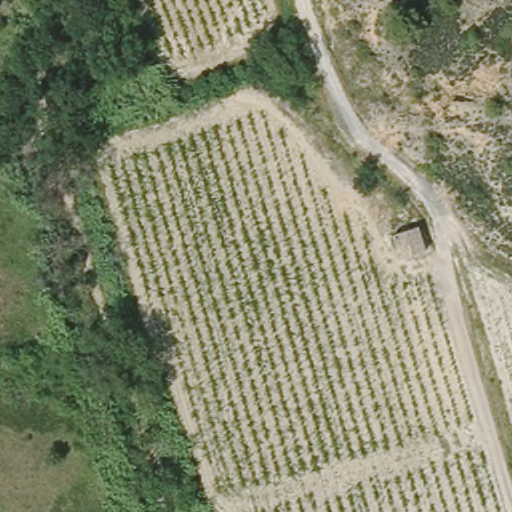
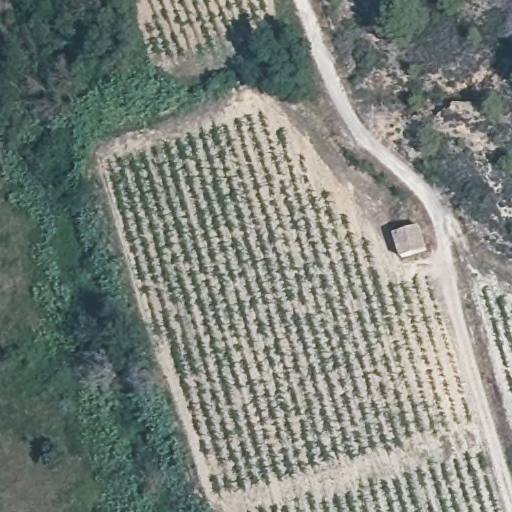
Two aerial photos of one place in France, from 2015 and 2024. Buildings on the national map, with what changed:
unchanged [(405,260),(397,235),(420,228),(429,253),(405,260)]

